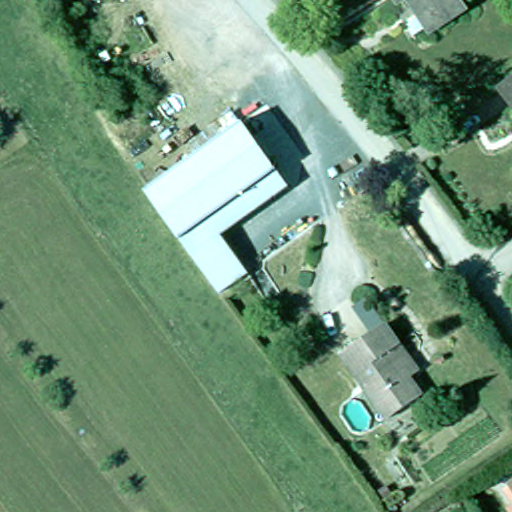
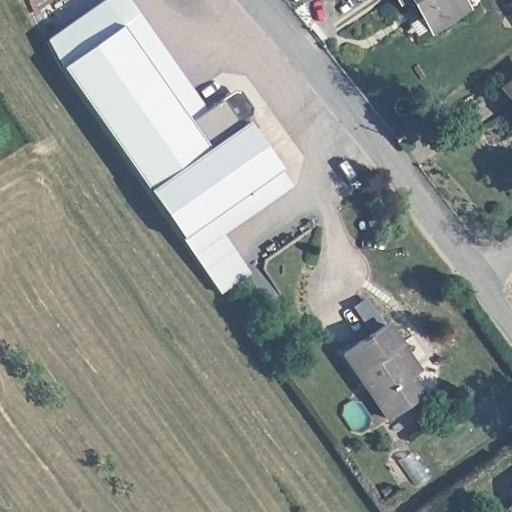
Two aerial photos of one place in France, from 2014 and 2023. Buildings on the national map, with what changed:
new [(44,37),(96,0),(127,0),(205,108),(219,98),(238,123),(147,192),(57,66),(44,37)]
unchanged [(413,9),(418,6),(414,0),(458,0),(460,3),(425,26),(413,9)]
unchanged [(500,86),(512,77),(512,102),(500,86)]
unchanged [(247,116),(280,166),(185,239),(147,192),(247,116)]
unchanged [(280,166),(292,183),(197,255),(185,239),(280,166)]
unchanged [(385,417),(337,350),(380,322),(395,345),(413,370),(403,376),(417,396),(385,417)]
unchanged [(510,484),(512,483),(512,486),(510,484)]

